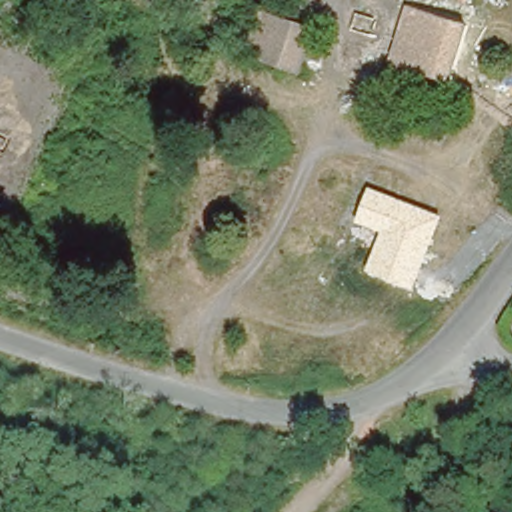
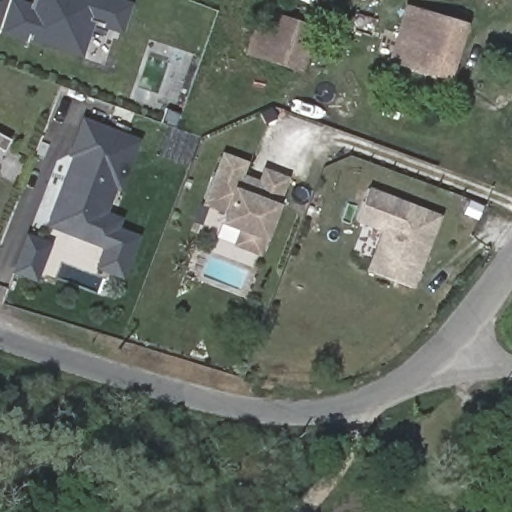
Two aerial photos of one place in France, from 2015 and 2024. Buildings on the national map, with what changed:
new [(0,30),(10,0),(15,0),(29,5),(30,0),(126,0),(132,2),(119,32),(94,24),(83,60),(0,33),(0,30)]
unchanged [(273,38),(258,33),(268,0),(295,0),(322,9),(297,81),(262,69),(273,38)]
demolished [(358,0),(381,6),(371,37),(348,31),(358,0)]
unchanged [(407,8),(466,25),(450,78),(391,60),(407,8)]
new [(122,190),(117,189),(109,212),(124,217),(120,228),(140,234),(124,279),(95,268),(103,247),(45,226),(73,157),(68,155),(84,115),(142,139),(122,190)]
new [(0,134),(9,139),(4,151),(0,149),(0,134)]
new [(279,203),(265,240),(260,255),(234,245),(237,229),(222,222),(224,213),(203,205),(223,151),(250,161),(245,174),(260,179),(264,168),(289,176),(279,203)]
unchanged [(412,290),(366,272),(379,233),(357,224),(371,190),(442,217),(412,290)]
new [(37,281),(11,271),(26,234),(51,245),(37,281)]

